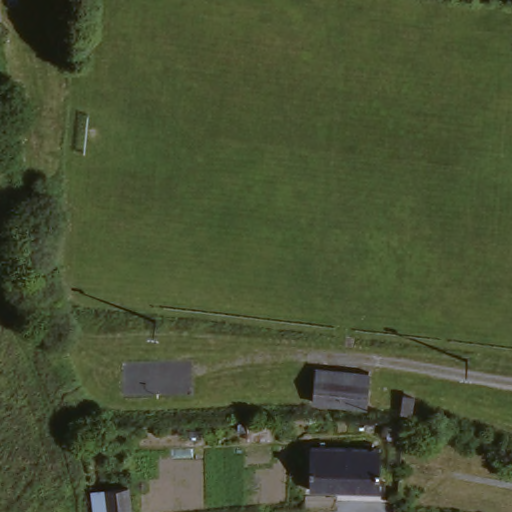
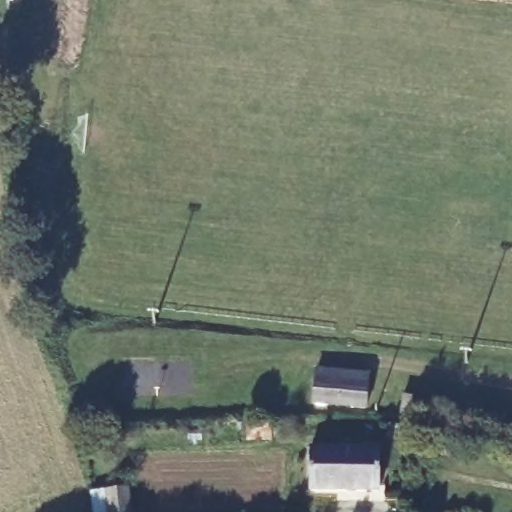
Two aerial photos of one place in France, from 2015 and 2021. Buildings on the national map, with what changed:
unchanged [(317,415),(317,387),(317,372),(371,374),(370,388),(370,416),(317,415)]
unchanged [(307,452),(375,450),(376,490),(310,492),(307,452)]
unchanged [(102,493),(125,493),(125,512),(103,512),(102,493)]

